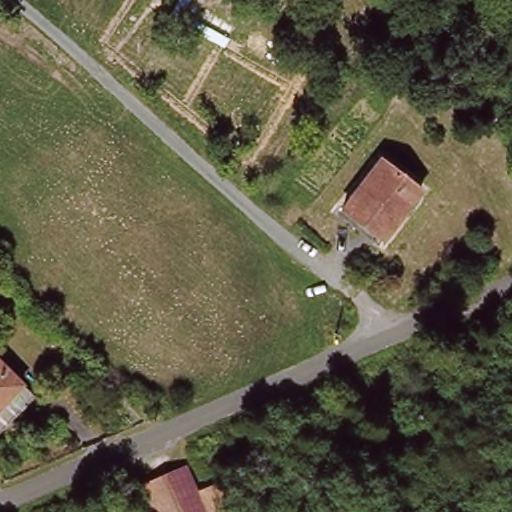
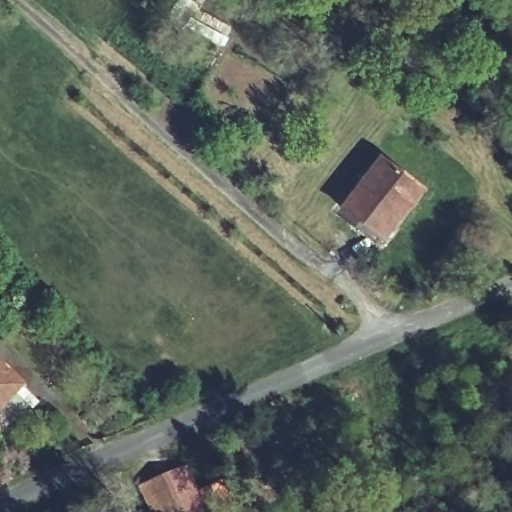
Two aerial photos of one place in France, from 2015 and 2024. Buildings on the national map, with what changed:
unchanged [(394,239),(357,207),(399,156),(437,184),(394,239)]
unchanged [(0,420),(0,361),(4,357),(34,385),(0,420)]
unchanged [(221,512),(165,512),(151,482),(199,462),(221,512)]

